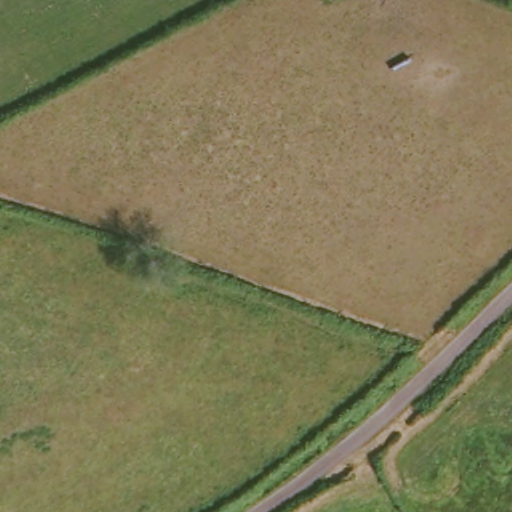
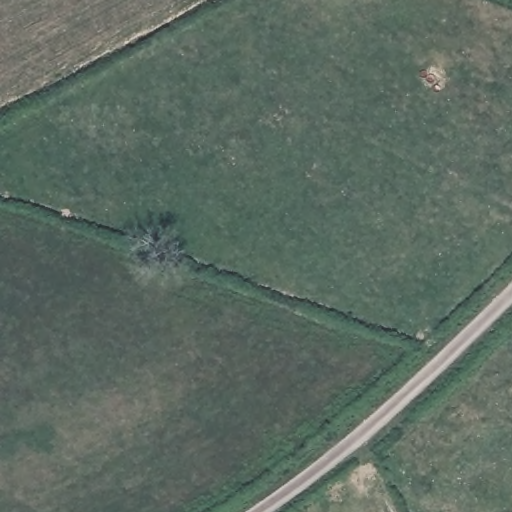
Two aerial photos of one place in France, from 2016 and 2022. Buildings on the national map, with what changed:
[]

